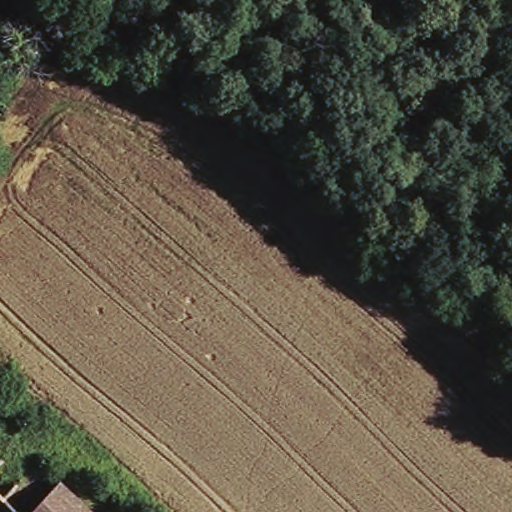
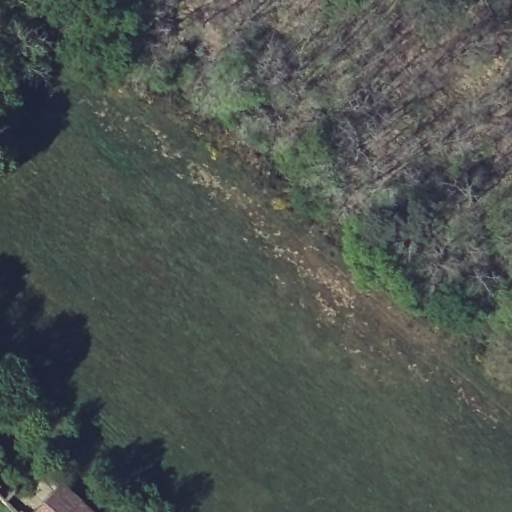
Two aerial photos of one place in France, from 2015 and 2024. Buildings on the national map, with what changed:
unchanged [(60,484),(91,512),(36,512),(60,484)]

